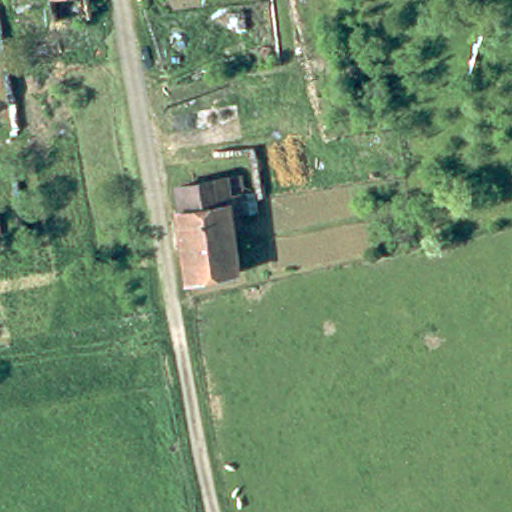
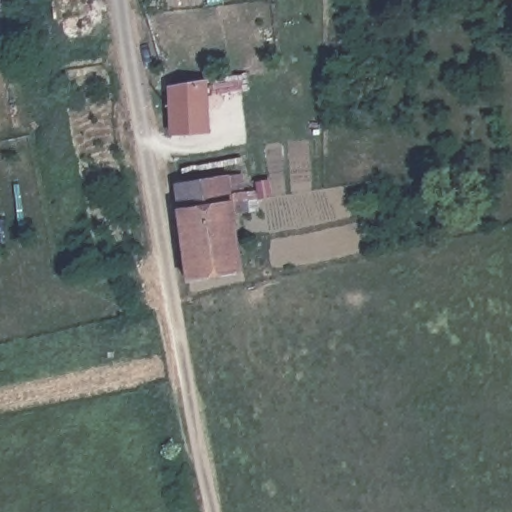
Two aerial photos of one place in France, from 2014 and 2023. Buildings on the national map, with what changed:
unchanged [(96,8),(57,15),(55,0),(95,0),(96,8)]
new [(170,89),(208,82),(210,134),(172,134),(170,89)]
unchanged [(178,183),(242,168),(243,192),(231,195),(180,206),(178,183)]
unchanged [(238,263),(188,274),(180,206),(231,195),(238,263)]

